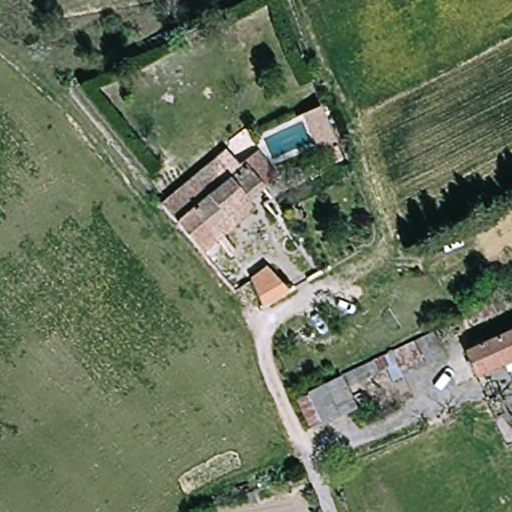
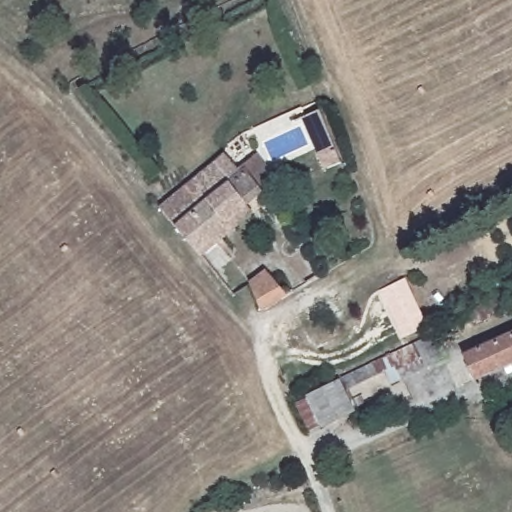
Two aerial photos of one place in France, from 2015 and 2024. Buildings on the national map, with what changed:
unchanged [(340,166),(325,171),(307,117),(323,113),(340,166)]
unchanged [(181,196),(220,160),(238,181),(248,172),(249,166),(261,156),(282,177),(251,205),(257,211),(222,243),(214,234),(181,196)]
unchanged [(208,255),(193,237),(184,229),(169,212),(166,210),(181,196),(214,234),(222,243),(208,255)]
unchanged [(255,280),(270,270),(292,295),(266,312),(255,280)]
new [(380,291),(406,279),(429,326),(403,339),(380,291)]
unchanged [(440,332),(451,356),(409,375),(403,363),(358,384),(352,373),(440,332)]
unchanged [(507,368),(479,379),(469,355),(512,336),(512,376),(510,376),(507,368)]
unchanged [(299,399),(314,392),(349,375),(364,407),(330,424),(327,420),(315,425),(299,399)]

